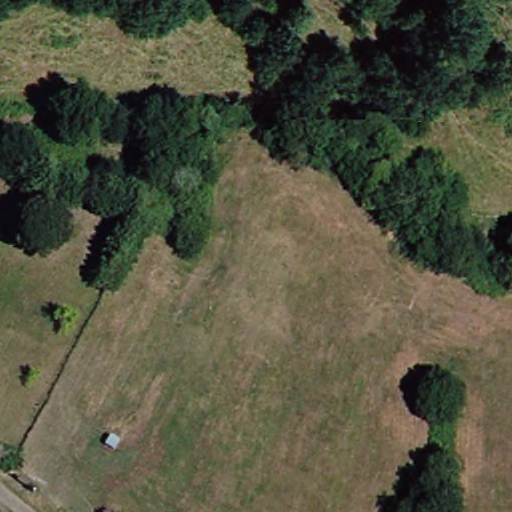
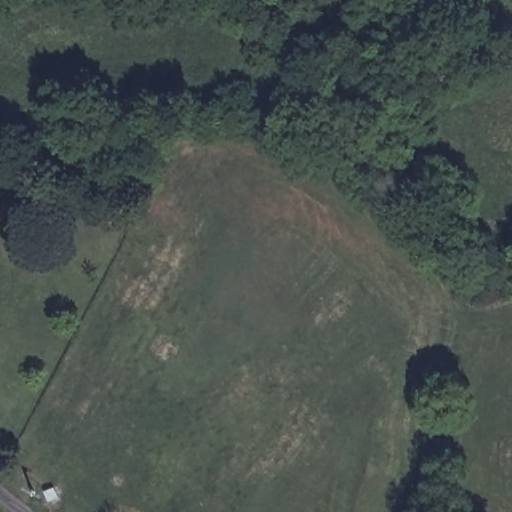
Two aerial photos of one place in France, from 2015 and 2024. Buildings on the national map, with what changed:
[]

